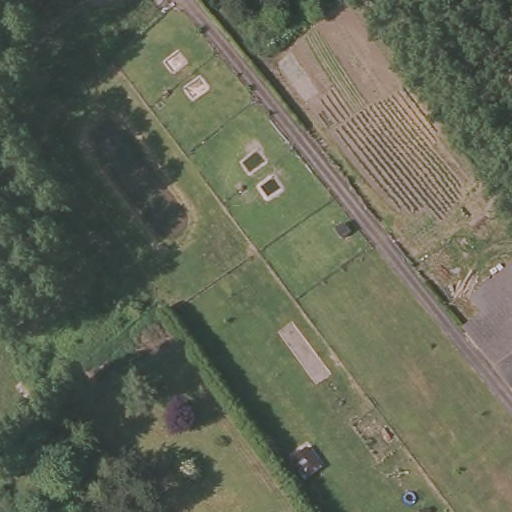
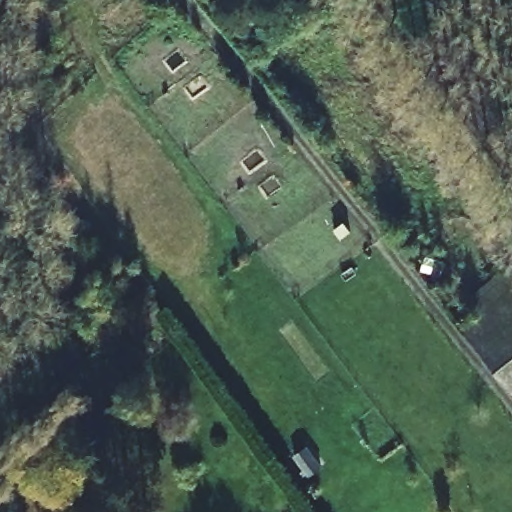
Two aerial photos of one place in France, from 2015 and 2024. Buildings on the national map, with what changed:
unchanged [(482,313),(469,297),(511,263),(512,265),(512,389),(463,328),(482,313)]

